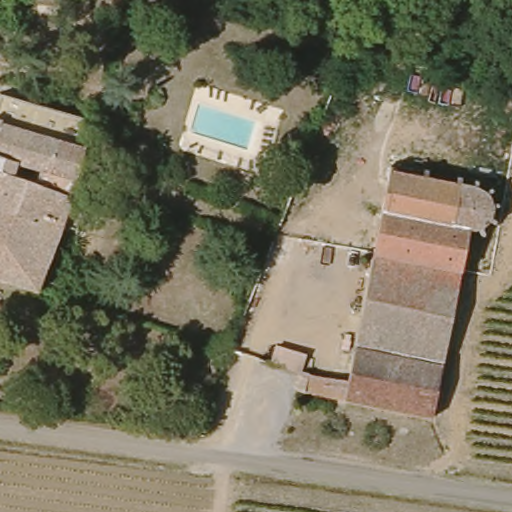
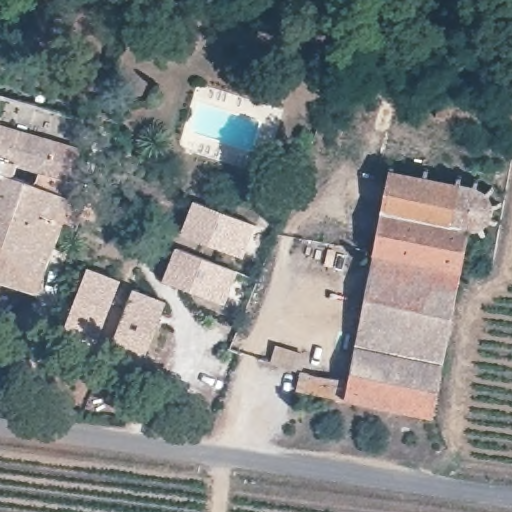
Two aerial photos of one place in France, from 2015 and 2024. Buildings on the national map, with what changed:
unchanged [(104,208),(99,226),(93,229),(79,225),(76,233),(63,230),(35,298),(0,286),(0,102),(126,142),(115,182),(76,170),(72,184),(91,191),(88,197),(102,202),(104,208)]
unchanged [(395,162),(401,163),(402,172),(422,175),(424,167),(432,168),(431,176),(459,181),(462,172),(468,175),(464,182),(475,187),(479,176),(487,179),(484,187),(492,195),(500,190),(504,197),(497,201),(498,211),(508,214),(506,221),(497,217),(492,225),(498,234),(492,239),(487,232),(475,230),(437,419),(413,413),(361,402),(308,392),(312,371),(353,379),(395,162)]
new [(257,224),(243,260),(181,237),(194,202),(257,224)]
new [(239,269),(227,306),(163,282),(177,247),(239,269)]
new [(99,342),(66,331),(88,267),(121,280),(99,342)]
new [(167,302),(145,362),(110,350),(133,288),(167,302)]

